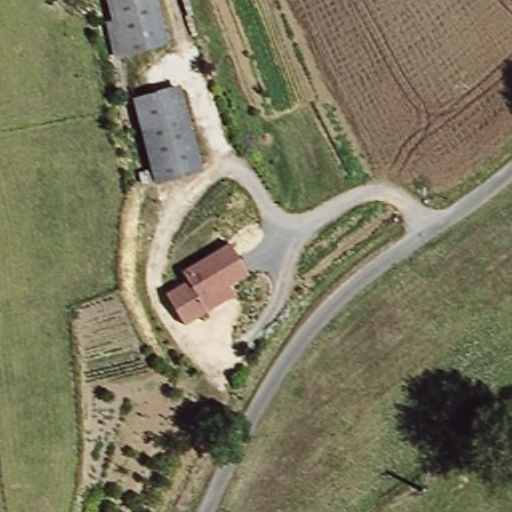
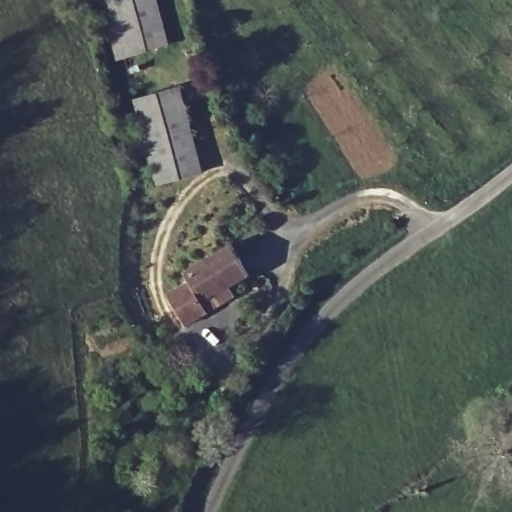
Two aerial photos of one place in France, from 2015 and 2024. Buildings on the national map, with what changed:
unchanged [(107,23),(113,21),(108,0),(160,0),(172,46),(116,61),(107,23)]
unchanged [(205,174),(157,187),(135,99),(183,86),(205,174)]
unchanged [(251,275),(232,289),(237,298),(187,330),(167,295),(190,280),(185,272),(230,244),(251,275)]

